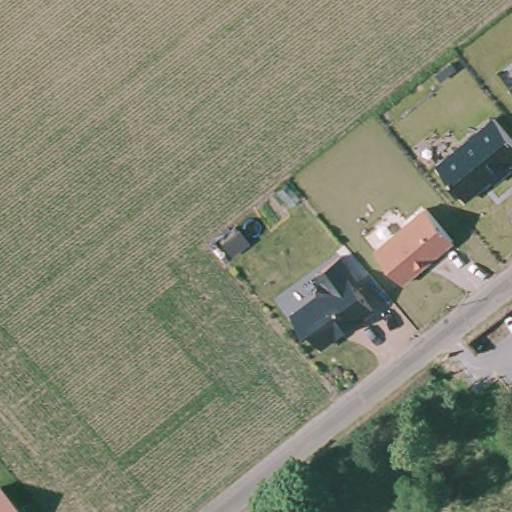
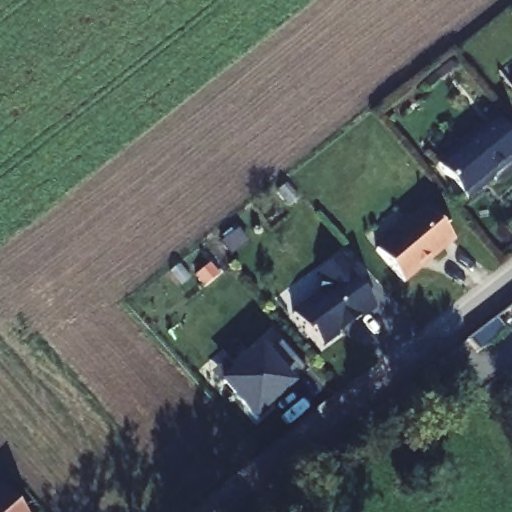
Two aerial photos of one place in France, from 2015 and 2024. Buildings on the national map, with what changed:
unchanged [(511,85),(512,84),(512,87),(511,85)]
unchanged [(512,135),(512,164),(469,199),(436,162),(495,114),(512,135)]
unchanged [(455,239),(405,282),(375,247),(426,204),(455,239)]
unchanged [(360,275),(356,284),(375,306),(320,348),(292,311),(318,290),(320,277),(315,271),(342,251),(360,275)]
new [(219,379),(262,345),(270,354),(278,347),(304,375),(294,384),(295,386),(254,421),(219,379)]
unchanged [(0,512),(0,485),(24,512),(0,512)]

